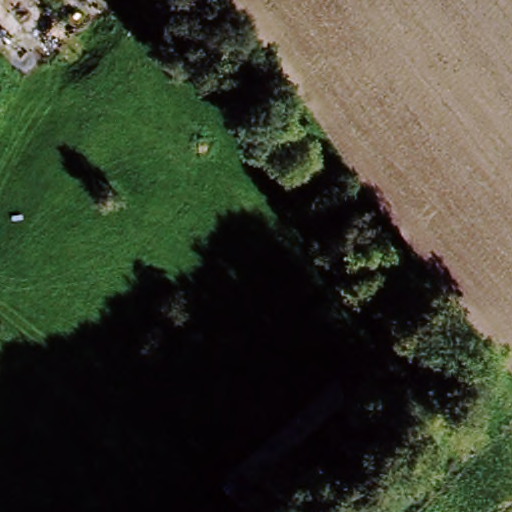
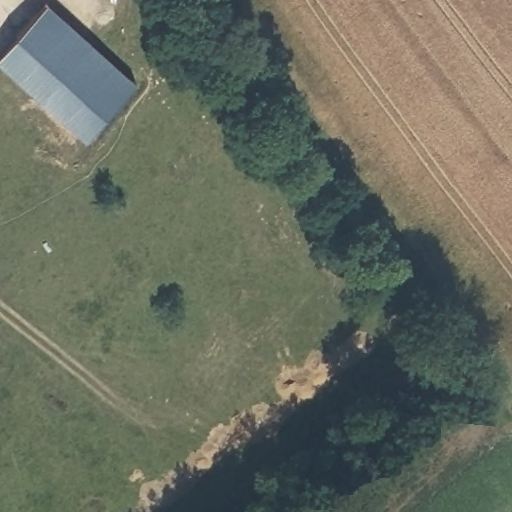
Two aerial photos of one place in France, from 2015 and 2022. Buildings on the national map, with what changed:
new [(136,86),(87,143),(0,67),(0,58),(46,6),(136,86)]
unchanged [(218,491),(233,478),(317,398),(340,423),(256,501),(245,512),(239,512),(218,491)]

